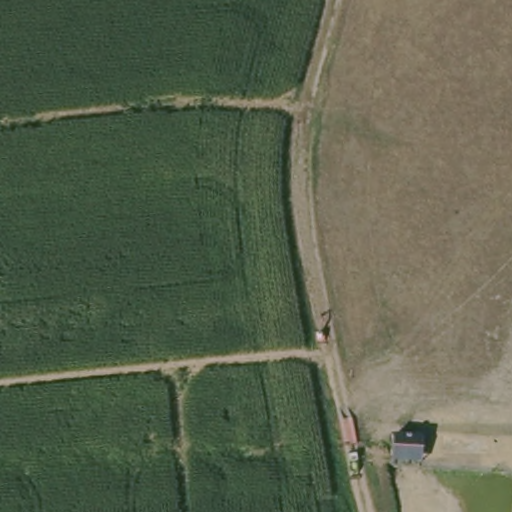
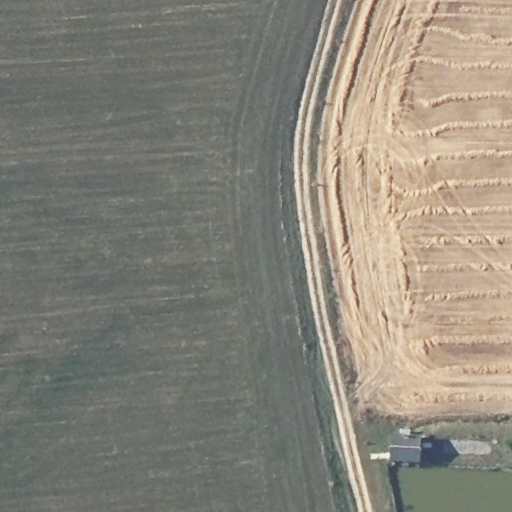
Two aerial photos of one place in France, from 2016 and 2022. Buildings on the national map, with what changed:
unchanged [(382,455),(382,438),(383,431),(413,432),(412,456),(382,455)]

